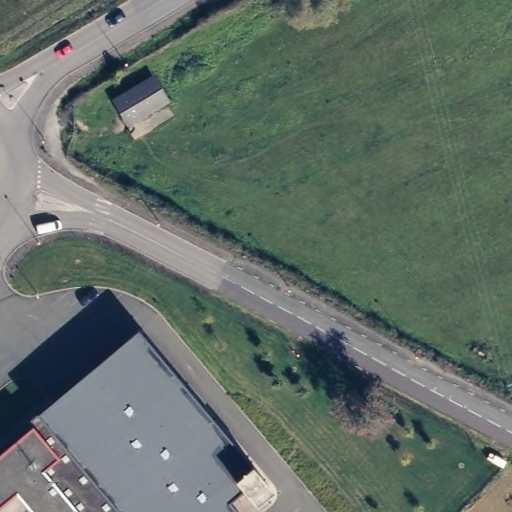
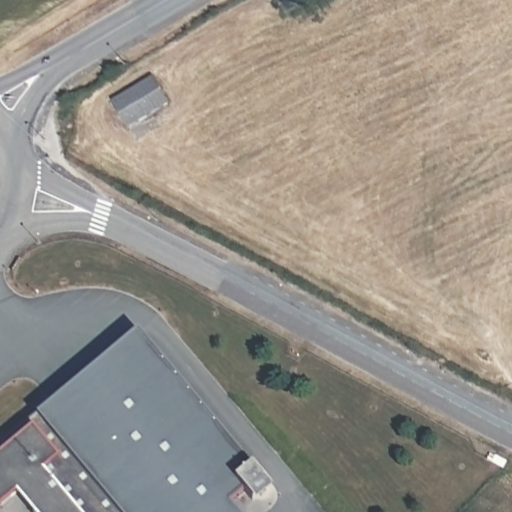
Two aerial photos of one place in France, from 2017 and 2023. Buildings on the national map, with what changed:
unchanged [(253,0),(266,0),(272,11),(241,31),(230,14),(253,0)]
unchanged [(147,82),(162,106),(124,129),(109,105),(147,82)]
unchanged [(252,465),(272,489),(255,503),(243,489),(228,502),(236,512),(32,512),(15,491),(0,503),(0,450),(32,425),(27,419),(135,330),(176,376),(252,465)]

